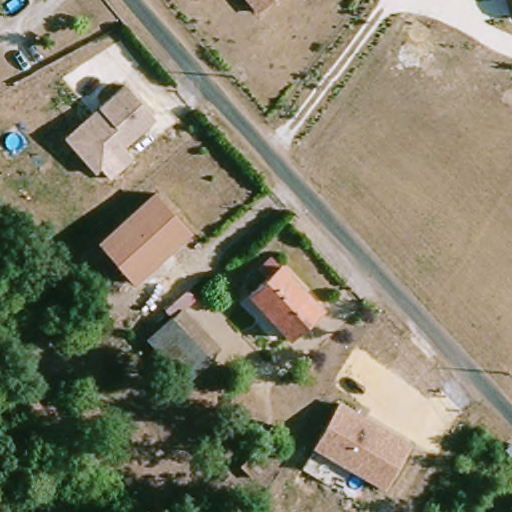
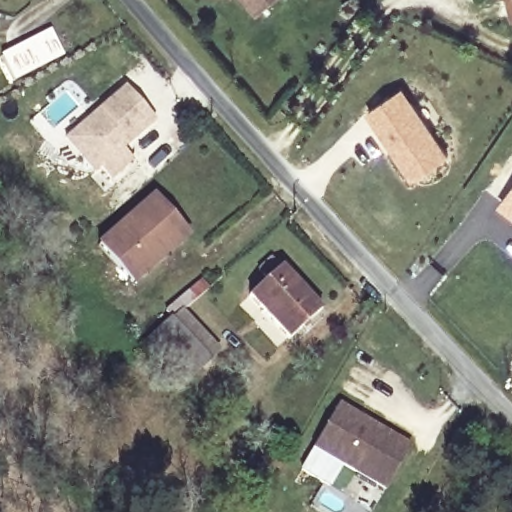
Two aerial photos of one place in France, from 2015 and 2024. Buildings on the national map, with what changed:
unchanged [(246,0),(275,0),(258,15),(246,0)]
unchanged [(510,20),(506,0),(512,0),(512,19),(510,20)]
new [(53,32),(65,55),(43,67),(16,81),(3,57),(30,43),(53,32)]
unchanged [(65,136),(102,107),(128,85),(156,121),(124,149),(133,161),(108,180),(100,168),(93,174),(65,136)]
new [(401,92),(410,105),(446,161),(413,182),(367,113),(391,97),(401,92)]
new [(512,191),(512,215),(500,206),(512,191)]
unchanged [(126,281),(120,275),(102,256),(161,205),(183,230),(154,256),(126,281)]
unchanged [(325,310),(290,338),(250,292),(269,274),(261,266),(275,254),(282,262),(283,261),(325,310)]
unchanged [(182,292),(199,278),(206,287),(191,301),(167,321),(160,312),(182,292)]
unchanged [(177,385),(141,342),(167,321),(203,362),(177,385)]
unchanged [(340,401),(413,442),(386,488),(313,447),(340,401)]

